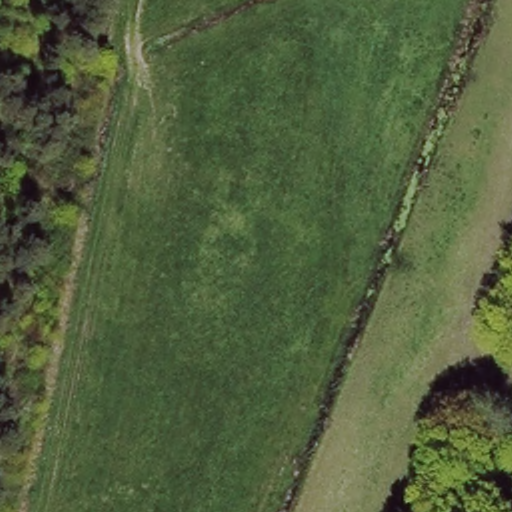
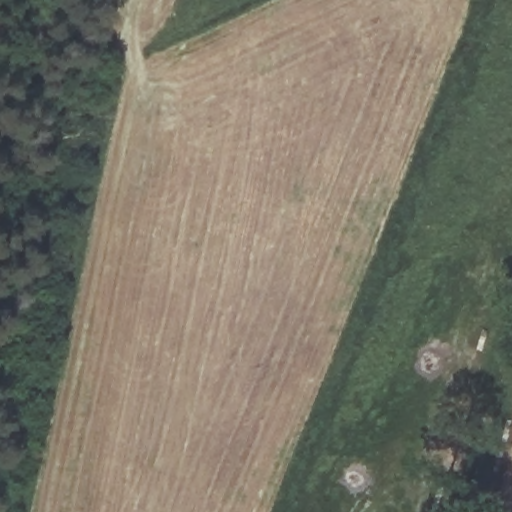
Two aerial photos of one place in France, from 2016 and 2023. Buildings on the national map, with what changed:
[]

